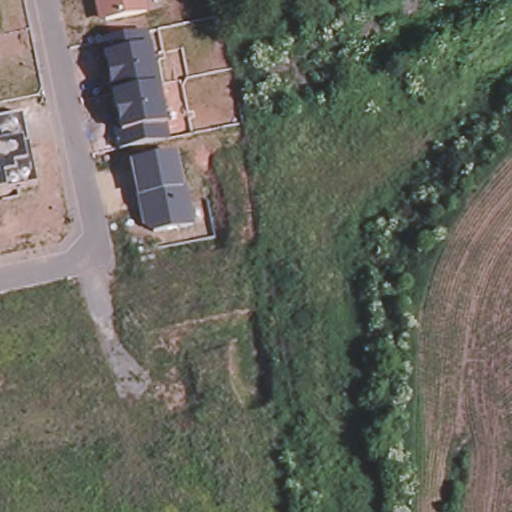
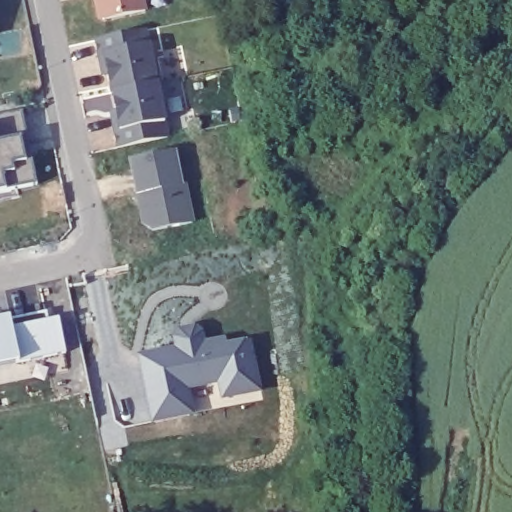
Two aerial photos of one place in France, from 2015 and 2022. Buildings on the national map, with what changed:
unchanged [(105,19),(99,16),(95,1),(95,0),(144,0),(146,10),(105,19)]
unchanged [(100,57),(97,40),(145,30),(157,84),(113,92),(109,74),(104,75),(100,57)]
unchanged [(117,112),(113,92),(157,84),(169,137),(120,147),(116,131),(112,112),(117,112)]
unchanged [(29,145),(37,184),(5,191),(0,192),(0,119),(21,115),(29,145)]
unchanged [(132,162),(175,152),(182,185),(185,184),(194,221),(154,230),(145,224),(141,205),(139,195),(132,162)]
new [(12,328),(59,320),(67,353),(0,367),(0,320),(10,318),(12,328)]
new [(262,391),(221,400),(217,385),(189,392),(194,415),(151,423),(137,357),(174,349),(172,339),(177,331),(196,327),(204,332),(205,341),(226,337),(227,343),(252,338),(262,391)]

